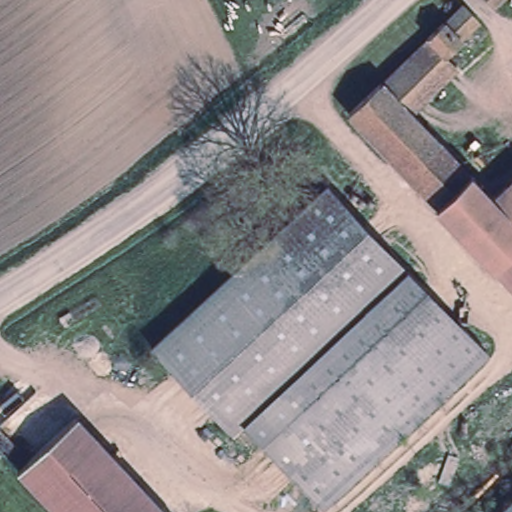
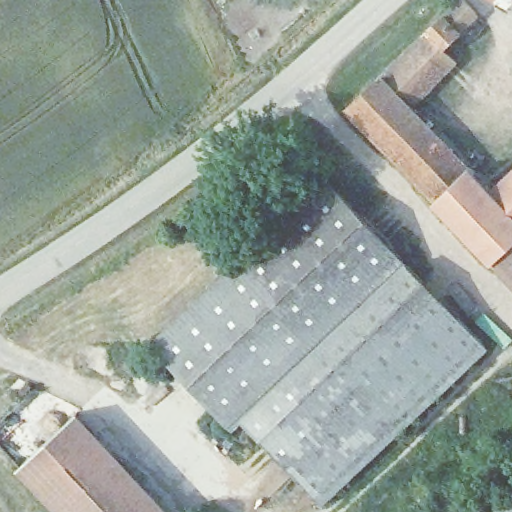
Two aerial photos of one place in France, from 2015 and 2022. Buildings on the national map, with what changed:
unchanged [(440,7),(443,10),(453,0),(471,0),(475,4),(456,24),(458,25),(442,41),(454,54),(442,65),(406,98),(378,70),(414,35),(426,25),(424,24),(440,7)]
unchanged [(346,98),(376,69),(378,70),(406,98),(468,161),(435,192),(346,98)]
unchanged [(433,195),(435,192),(468,161),(491,185),(455,217),(433,195)]
unchanged [(512,167),(511,165),(512,164),(512,167)]
unchanged [(512,167),(512,207),(491,185),(511,165),(512,167)]
unchanged [(327,177),(408,265),(243,420),(233,430),(152,342),(327,177)]
unchanged [(512,207),(512,237),(493,256),(455,217),(491,185),(512,207)]
unchanged [(512,277),(493,256),(512,237),(512,277)]
unchanged [(408,265),(486,350),(324,505),(243,420),(408,265)]
unchanged [(18,472),(78,416),(165,512),(54,512),(18,472)]
unchanged [(512,512),(490,512),(512,490),(512,512)]

